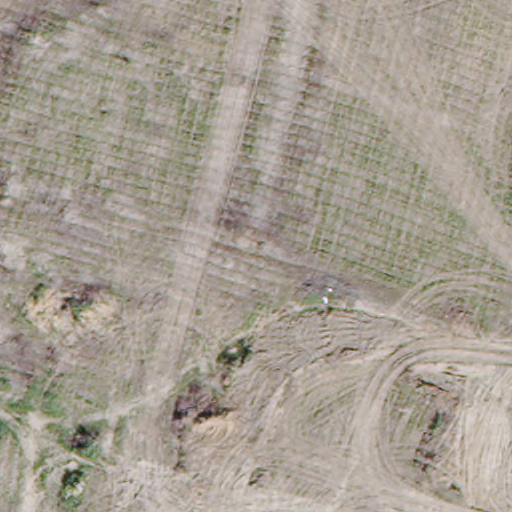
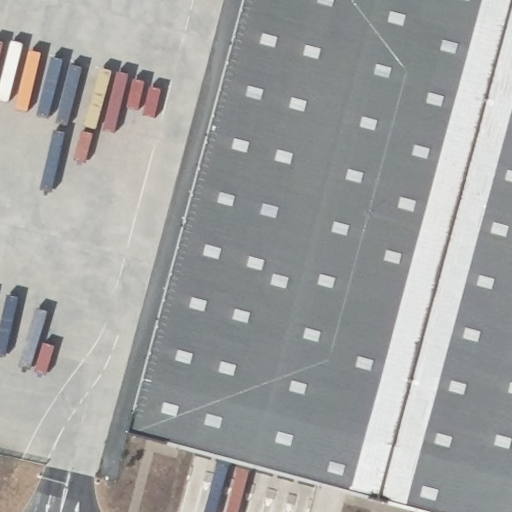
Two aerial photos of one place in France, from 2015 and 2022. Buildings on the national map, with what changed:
new [(512,512),(430,512),(130,430),(245,0),(512,0),(512,512)]

